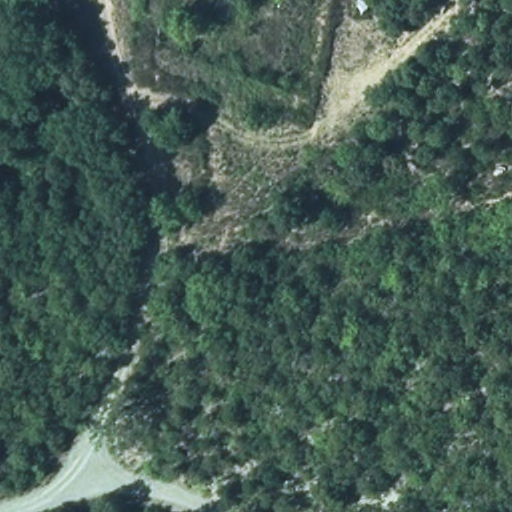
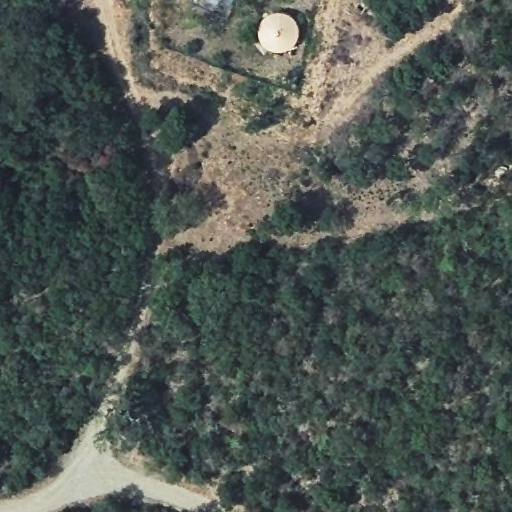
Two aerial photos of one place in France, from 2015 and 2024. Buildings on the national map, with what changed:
unchanged [(355,0),(372,0),(378,5),(362,27),(345,15),(355,0)]

